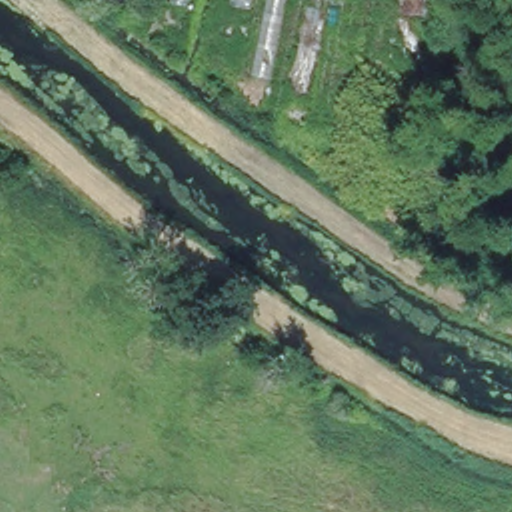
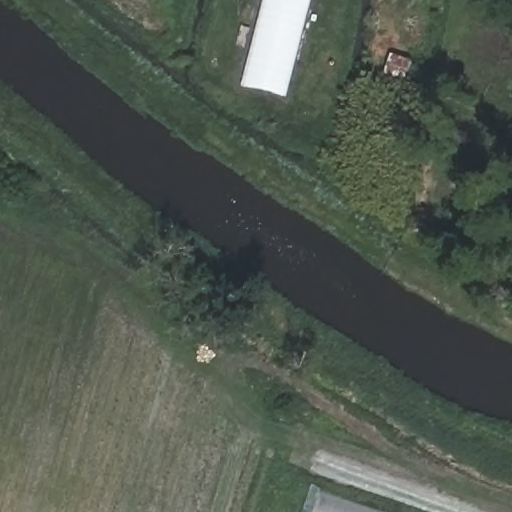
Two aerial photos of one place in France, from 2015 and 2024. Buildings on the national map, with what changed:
demolished [(193,7),(172,2),(172,0),(195,0),(193,7)]
demolished [(253,7),(233,5),(234,0),(255,0),(253,7)]
new [(285,97),(243,85),(264,0),(309,0),(285,97)]
demolished [(275,80),(253,75),(269,0),(291,0),(275,80)]
new [(377,512),(311,512),(319,491),(377,512)]

